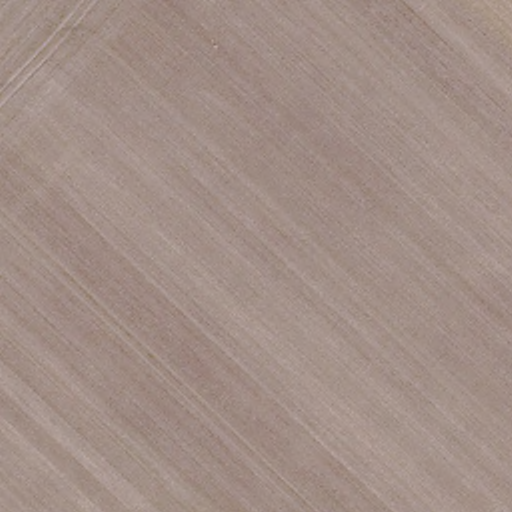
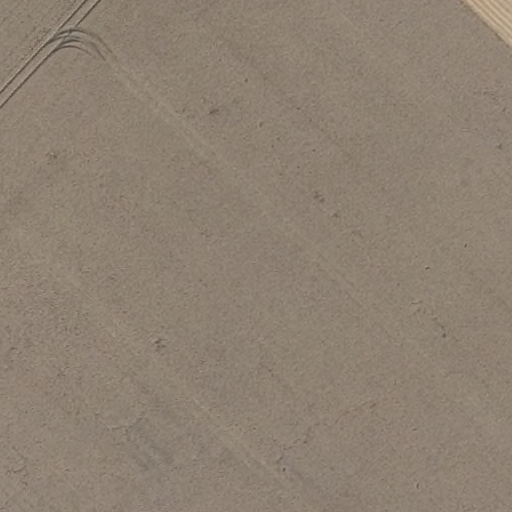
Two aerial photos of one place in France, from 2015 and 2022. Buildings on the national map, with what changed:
[]

